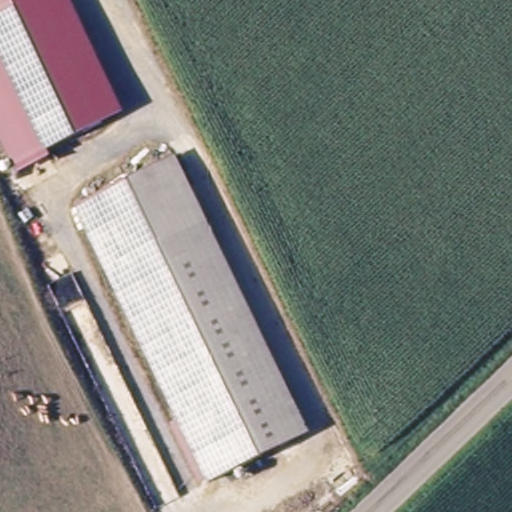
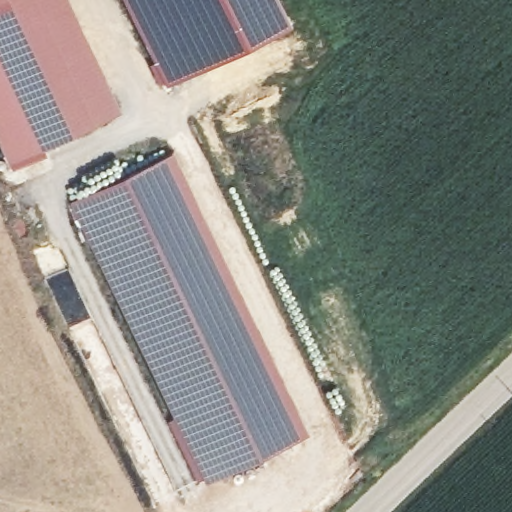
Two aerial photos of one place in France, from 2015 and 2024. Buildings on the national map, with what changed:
unchanged [(0,0),(6,0),(0,3),(0,0)]
unchanged [(0,56),(0,3),(6,0),(42,0),(99,122),(43,148),(0,56)]
unchanged [(99,122),(42,0),(65,0),(117,114),(99,122)]
new [(235,49),(162,83),(150,64),(155,60),(133,20),(124,0),(283,0),(290,16),(235,49)]
unchanged [(11,169),(0,144),(0,56),(43,148),(46,153),(11,169)]
unchanged [(151,155),(171,146),(312,449),(292,458),(151,155)]
unchanged [(209,498),(69,194),(151,155),(292,458),(209,498)]

